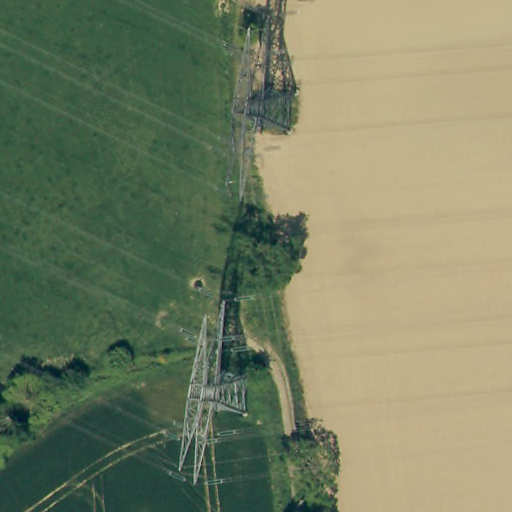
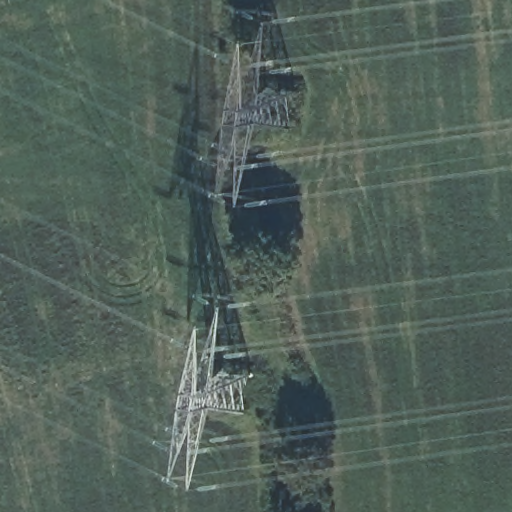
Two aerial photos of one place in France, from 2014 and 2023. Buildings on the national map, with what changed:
[]

